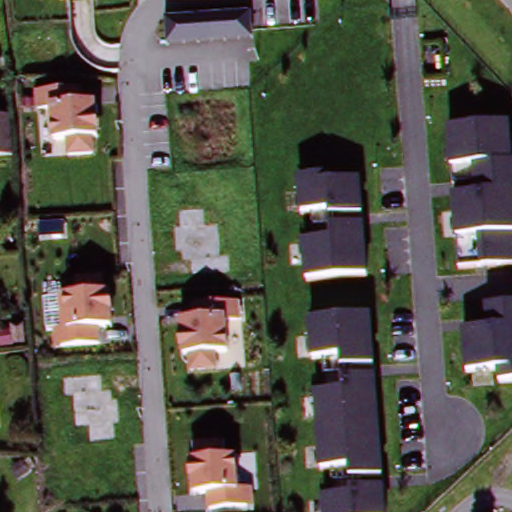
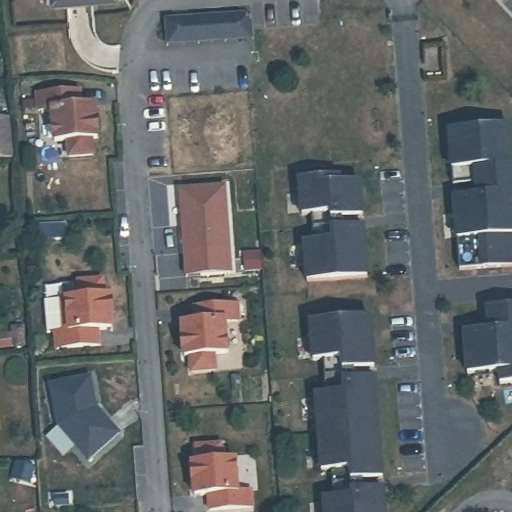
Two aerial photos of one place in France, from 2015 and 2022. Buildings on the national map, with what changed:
unchanged [(250,14),(252,41),(165,46),(163,21),(250,14)]
unchanged [(100,88),(107,151),(56,155),(51,89),(100,88)]
unchanged [(6,121),(8,161),(0,161),(0,122),(6,121)]
unchanged [(512,264),(462,268),(452,131),(512,126),(512,264)]
unchanged [(364,177),(375,276),(310,278),(308,239),(320,240),(320,213),(305,213),(305,184),(364,177)]
new [(226,185),(232,274),(185,278),(179,190),(226,185)]
unchanged [(53,334),(44,334),(43,302),(60,301),(79,301),(77,285),(102,283),(103,299),(113,299),(115,331),(95,332),(96,348),(60,350),(55,351),(53,334)]
unchanged [(207,321),(206,304),(247,301),(250,323),(230,325),(233,358),(184,363),(184,322),(207,321)]
unchanged [(512,381),(495,382),(495,371),(468,372),(467,326),(490,324),(490,305),(512,302),(512,381)]
unchanged [(379,318),(394,512),(330,512),(330,501),(337,501),(336,470),(322,471),(319,394),(333,393),(331,359),(318,360),(318,321),(379,318)]
new [(98,407),(121,434),(88,463),(75,448),(70,453),(52,432),(57,428),(48,384),(91,377),(98,407)]
unchanged [(223,445),(226,462),(241,461),(242,490),(249,490),(250,509),(208,511),(208,498),(191,500),(188,464),(196,463),(195,447),(223,445)]

